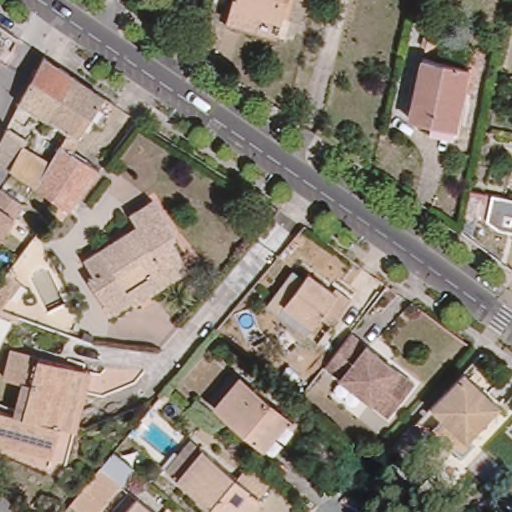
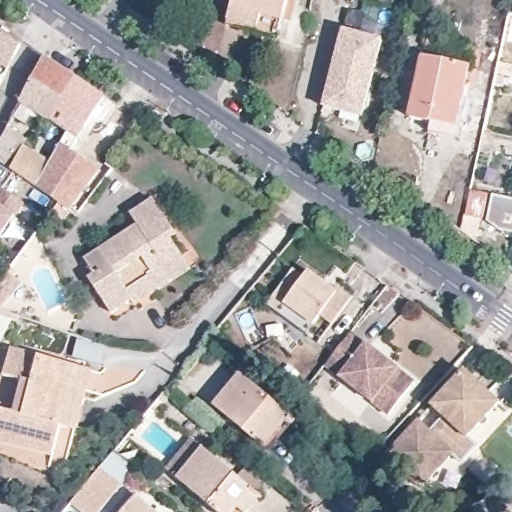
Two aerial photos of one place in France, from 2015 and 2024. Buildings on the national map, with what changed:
unchanged [(230,24),(235,6),(236,0),(291,0),(286,20),(281,36),(230,24)]
new [(341,29),(380,37),(371,76),(332,68),(341,29)]
new [(2,35),(19,45),(8,67),(0,62),(0,38),(2,35)]
unchanged [(78,74),(52,118),(23,99),(31,84),(48,53),(78,74)]
unchanged [(468,65),(455,125),(409,115),(423,56),(468,65)]
new [(332,68),(371,76),(362,115),(323,107),(332,68)]
unchanged [(63,199),(39,183),(0,157),(0,144),(12,122),(32,136),(27,142),(54,159),(71,130),(52,118),(78,74),(119,101),(106,122),(95,115),(75,147),(103,164),(83,191),(72,205),(64,215),(55,210),(63,199)]
unchanged [(488,191),(482,217),(466,214),(472,188),(488,191)]
unchanged [(23,206),(17,216),(0,242),(0,193),(23,206)]
unchanged [(126,285),(131,295),(110,308),(87,274),(93,270),(83,254),(135,221),(128,209),(152,195),(176,231),(170,235),(180,250),(126,285)]
unchanged [(190,265),(134,299),(131,295),(126,285),(180,250),(190,265)]
unchanged [(16,262),(29,273),(9,300),(0,312),(0,284),(16,262)]
unchanged [(299,272),(304,266),(318,276),(321,272),(346,292),(325,321),(320,317),(313,326),(307,321),(299,331),(271,311),(285,291),(274,282),(289,265),(299,272)]
unchanged [(380,356),(390,363),(415,383),(389,415),(324,365),(350,332),(380,356)]
unchanged [(51,448),(0,434),(0,401),(22,406),(30,375),(2,366),(10,338),(76,357),(51,448)]
unchanged [(90,361),(65,452),(51,448),(76,357),(90,361)]
unchanged [(463,458),(454,450),(422,483),(387,450),(419,415),(431,426),(443,413),(432,402),(465,366),(501,400),(469,433),(478,442),(463,458)]
unchanged [(244,376),(299,421),(294,426),(289,422),(268,448),(218,407),(244,376)]
unchanged [(196,440),(264,498),(252,512),(220,512),(170,470),(196,440)]
unchanged [(86,512),(71,500),(116,446),(138,464),(97,512),(86,512)]
unchanged [(116,512),(111,507),(129,485),(161,512),(116,512)]

